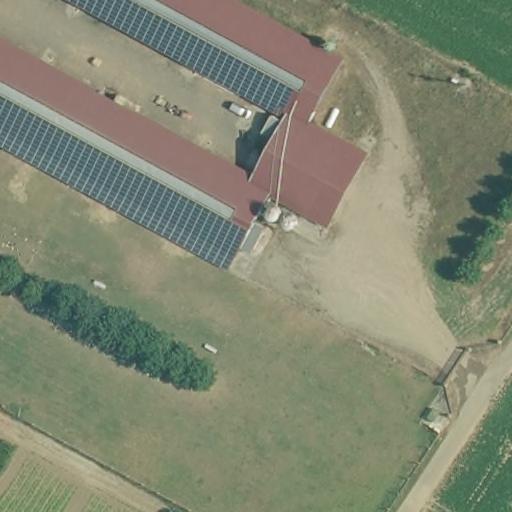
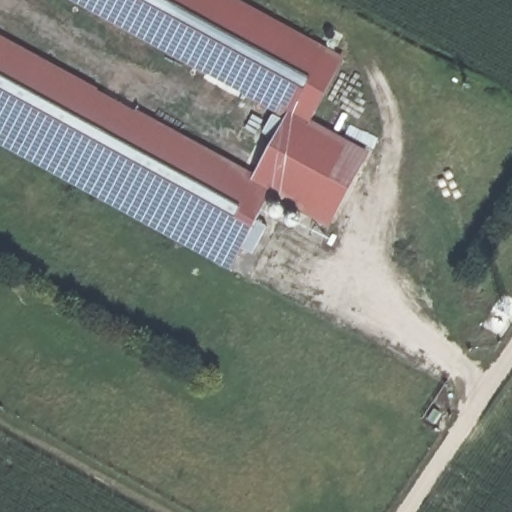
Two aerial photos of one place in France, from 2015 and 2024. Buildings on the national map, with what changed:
unchanged [(289,116),(76,0),(230,0),(344,62),(311,125),(349,148),(314,212),(276,191),(239,257),(0,127),(0,45),(253,183),(289,116)]
unchanged [(369,159),(334,223),(314,212),(349,148),(369,159)]

